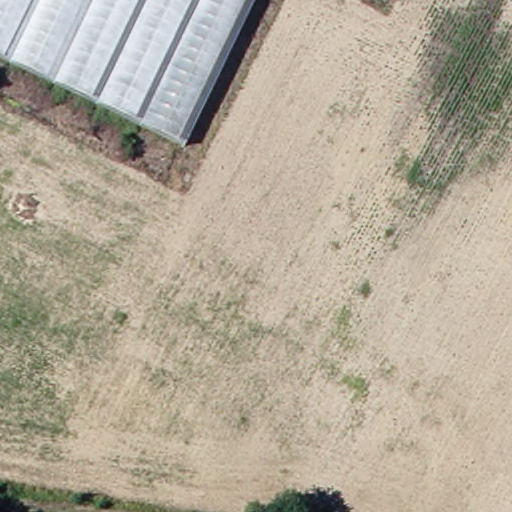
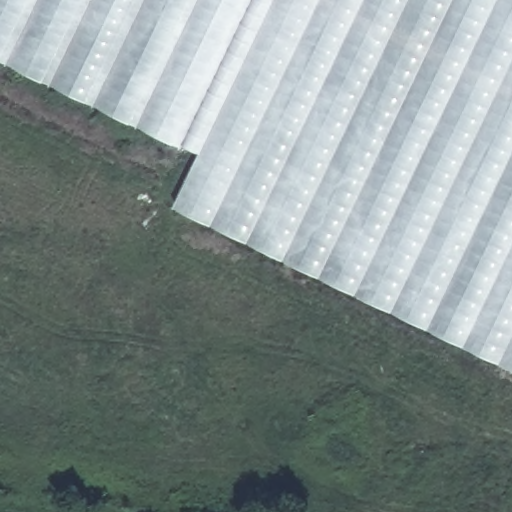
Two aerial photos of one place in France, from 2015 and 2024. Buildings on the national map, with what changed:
unchanged [(187,143),(0,54),(0,0),(257,0),(187,143)]
new [(187,143),(257,0),(512,0),(512,368),(177,205),(201,153),(187,143)]

